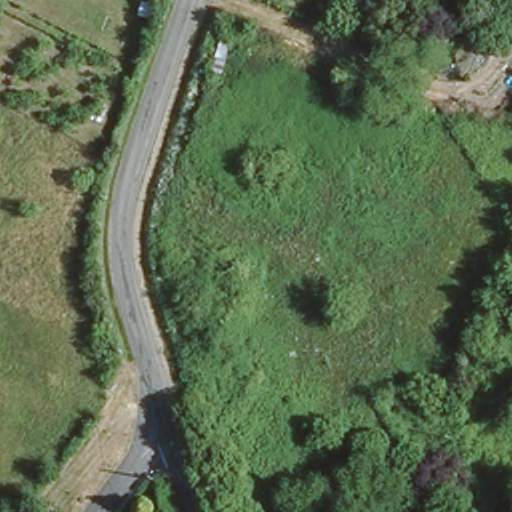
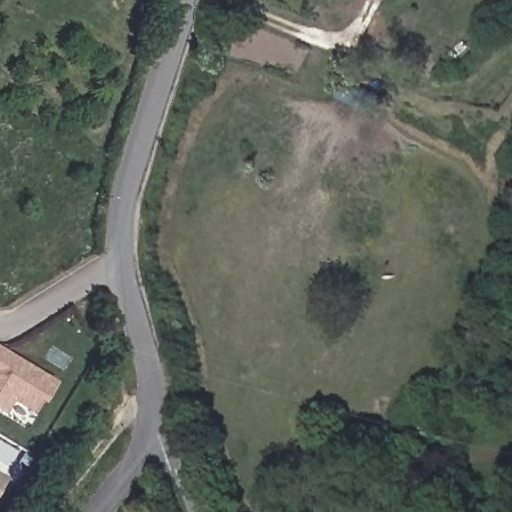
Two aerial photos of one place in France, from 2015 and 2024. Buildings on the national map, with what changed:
unchanged [(221,75),(212,72),(222,39),(230,41),(221,75)]
new [(49,402),(46,401),(39,413),(17,399),(7,414),(0,410),(0,347),(60,384),(49,402)]
new [(0,485),(0,479),(2,481),(0,485)]

